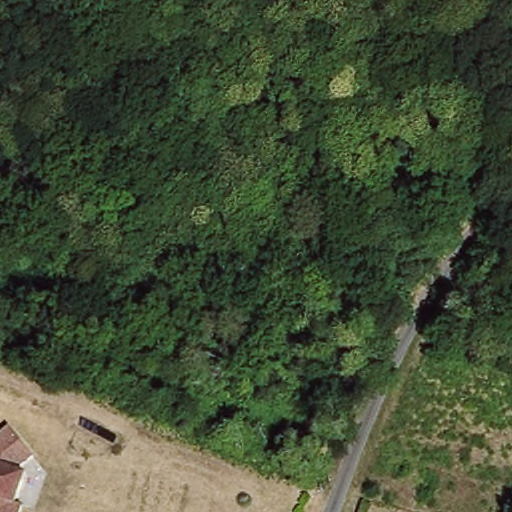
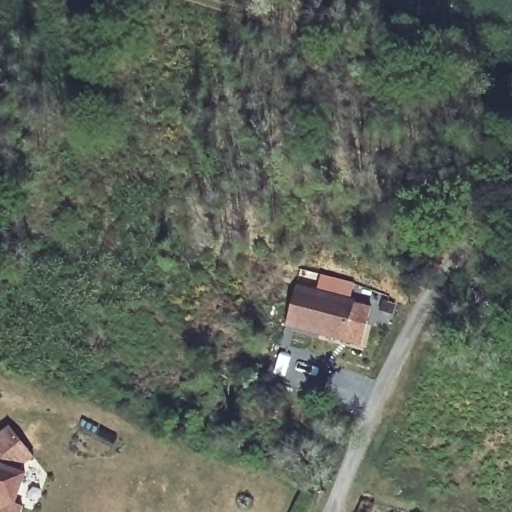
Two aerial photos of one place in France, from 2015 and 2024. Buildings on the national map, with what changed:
new [(347,341),(289,324),(299,286),(357,303),(357,306),(374,311),(367,334),(364,345),(347,341)]
unchanged [(34,457),(21,467),(20,472),(26,474),(15,505),(23,507),(21,512),(0,512),(0,435),(10,427),(34,457)]

